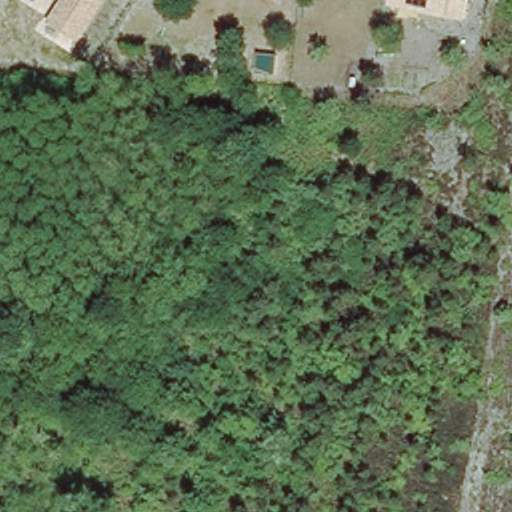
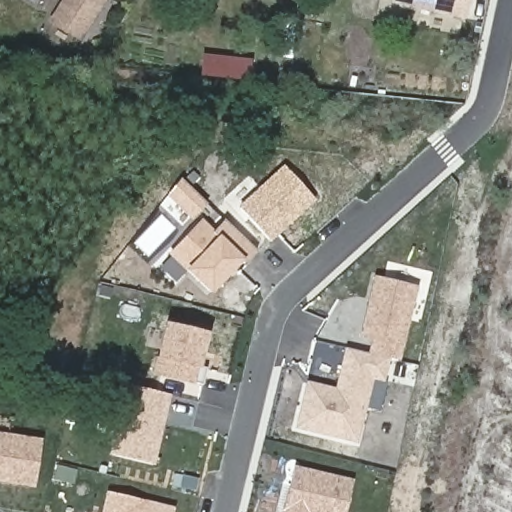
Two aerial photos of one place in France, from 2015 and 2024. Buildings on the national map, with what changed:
unchanged [(81,41),(49,21),(64,0),(108,0),(81,41)]
unchanged [(466,19),(450,16),(392,4),(392,0),(469,0),(466,19)]
new [(270,240),(241,208),(286,166),(315,199),(270,240)]
new [(166,197),(181,179),(207,206),(192,222),(166,197)]
new [(184,271),(168,256),(202,220),(214,231),(224,221),(253,249),(213,292),(188,267),(184,271)]
new [(366,354),(369,341),(359,338),(374,276),(418,287),(400,362),(366,354)]
new [(193,386),(151,376),(165,323),(206,333),(193,386)]
new [(335,388),(346,348),(366,354),(389,360),(384,382),(373,380),(357,443),(295,429),(305,381),(335,388)]
new [(171,396),(155,466),(110,456),(126,386),(171,396)]
new [(0,479),(0,435),(38,440),(31,484),(0,479)]
new [(355,480),(348,512),(281,512),(291,466),(355,480)]
new [(175,507),(173,512),(101,512),(106,491),(175,507)]

